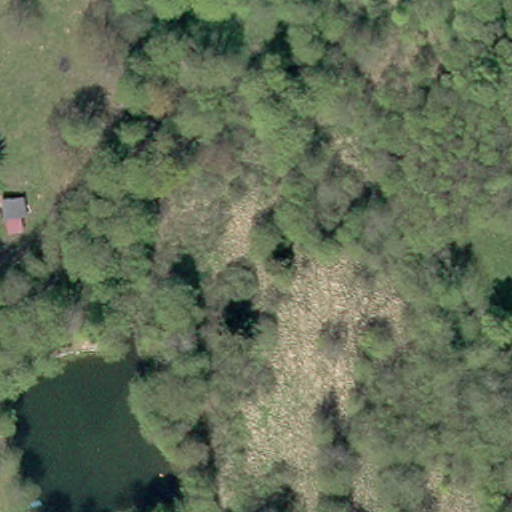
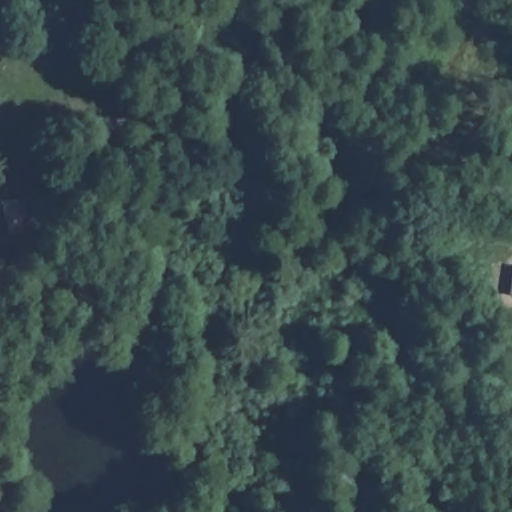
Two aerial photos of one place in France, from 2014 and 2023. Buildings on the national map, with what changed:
[]

